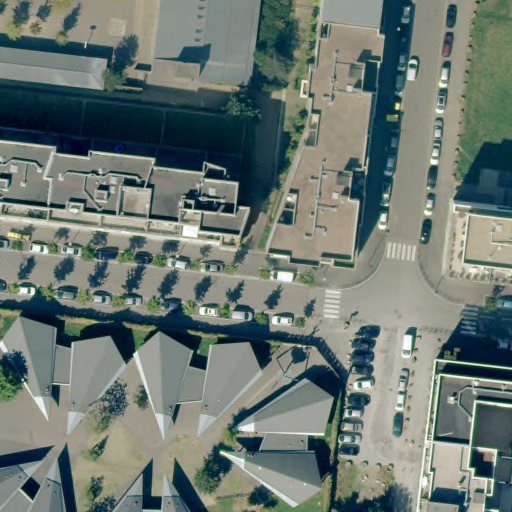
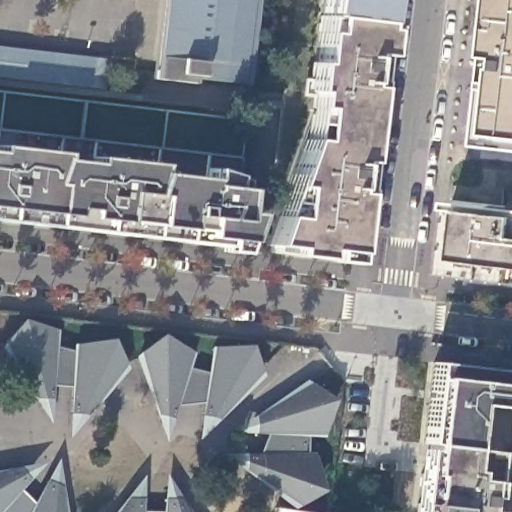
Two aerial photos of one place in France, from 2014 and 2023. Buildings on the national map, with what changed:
unchanged [(244,59),(250,60),(248,79),(189,72),(189,75),(189,77),(181,77),(148,74),(156,0),(250,0),(244,59)]
unchanged [(373,75),(377,77),(373,109),(370,110),(367,129),(362,184),(365,187),(361,214),(359,217),(358,217),(354,247),(352,259),(325,255),(267,246),(268,239),(265,239),(285,184),(315,103),(321,87),(304,85),(307,55),(312,56),(318,0),(382,0),(373,75)]
new [(483,142),(475,139),(489,0),(512,0),(512,145),(483,142)]
demolished [(484,4),(484,0),(512,0),(512,8),(484,4)]
unchanged [(100,80),(139,85),(140,93),(0,75),(0,46),(103,56),(100,80)]
unchanged [(52,154),(85,157),(85,152),(151,159),(150,167),(198,173),(200,162),(221,170),(220,182),(234,184),(231,207),(245,208),(233,244),(210,241),(0,216),(0,142),(53,147),(52,154)]
unchanged [(483,266),(482,277),(440,272),(448,199),(505,206),(503,212),(512,213),(512,269),(483,266)]
unchanged [(51,386),(50,398),(37,398),(27,382),(4,343),(21,323),(53,330),(52,346),(75,352),(76,345),(109,343),(122,364),(100,393),(85,415),(70,413),(72,389),(72,385),(51,384),(51,386)]
unchanged [(188,353),(183,368),(207,375),(215,348),(246,350),(258,372),(221,412),(215,418),(201,416),(202,410),(204,401),(175,404),(175,405),(170,418),(157,414),(154,402),(139,353),(160,340),(188,353)]
unchanged [(508,428),(511,405),(469,400),(464,443),(494,452),(500,462),(512,463),(512,488),(500,491),(497,512),(412,512),(429,357),(512,367),(512,428),(508,428)]
unchanged [(308,385),(327,401),(322,428),(322,433),(306,432),(305,456),(313,456),(315,488),(295,504),(245,468),(245,454),(260,455),(269,432),(254,431),(255,417),(308,385)]
unchanged [(21,492),(34,504),(56,462),(64,512),(0,512),(0,472),(46,464),(21,492)]
unchanged [(187,512),(163,512),(164,476),(187,512)]
unchanged [(142,512),(118,512),(142,478),(142,512)]

